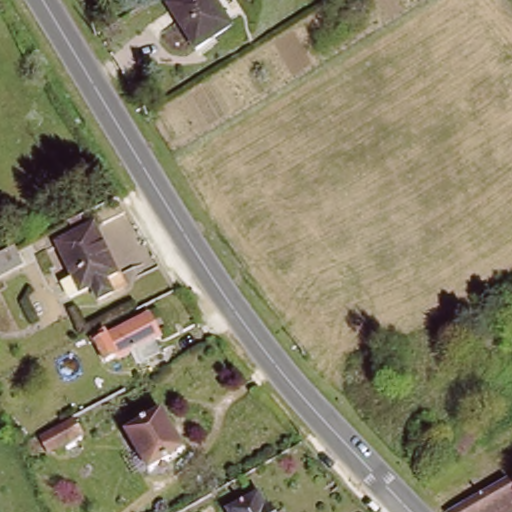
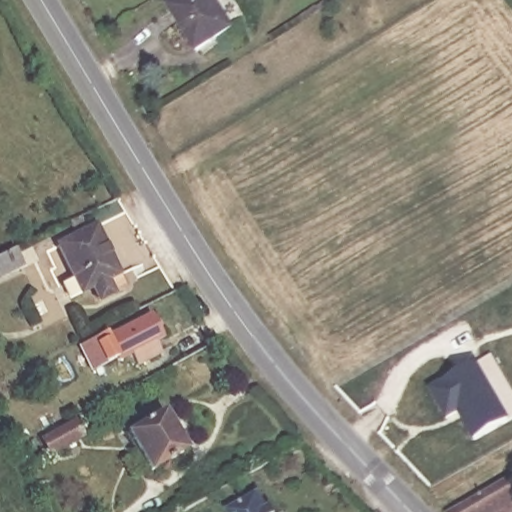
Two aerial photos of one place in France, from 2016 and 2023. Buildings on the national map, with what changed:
unchanged [(233,27),(196,50),(170,7),(181,0),(216,0),(233,27)]
unchanged [(128,286),(111,293),(105,282),(75,297),(66,282),(79,276),(63,245),(99,227),(128,286)]
unchanged [(1,276),(0,274),(0,256),(22,245),(30,261),(1,276)]
unchanged [(110,362),(98,337),(110,332),(112,335),(155,315),(165,337),(158,340),(165,353),(142,364),(136,351),(123,358),(122,356),(110,362)]
new [(478,363),(510,419),(476,440),(464,418),(466,416),(462,409),(449,417),(433,390),(478,363)]
unchanged [(162,466),(152,472),(131,435),(169,413),(190,450),(170,462),(162,466)]
unchanged [(86,433),(53,451),(45,436),(78,418),(86,433)]
unchanged [(30,435),(23,439),(21,435),(27,431),(30,435)]
unchanged [(511,512),(450,512),(512,478),(512,511),(511,512)]
unchanged [(272,510),(275,509),(277,512),(233,512),(263,495),(272,510)]

